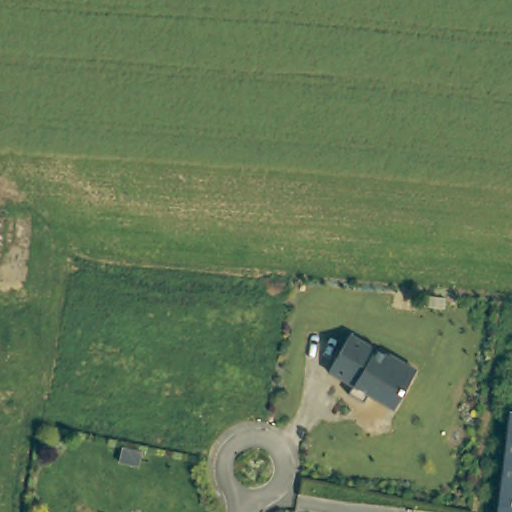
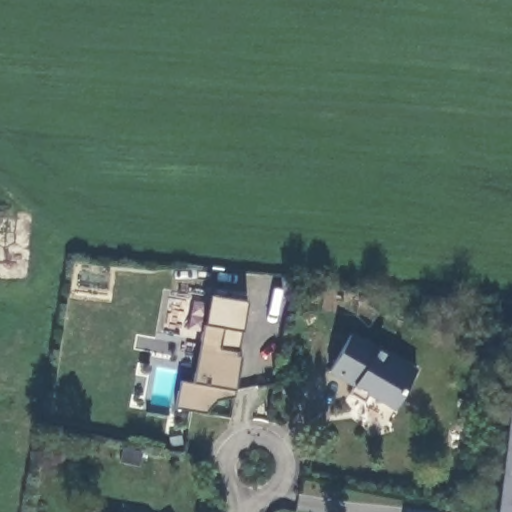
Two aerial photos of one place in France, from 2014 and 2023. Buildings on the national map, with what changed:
new [(240,331),(238,352),(241,356),(235,390),(236,397),(217,401),(206,415),(175,409),(181,381),(194,383),(206,324),(210,296),(247,302),(240,331)]
unchanged [(365,403),(349,394),(354,386),(329,372),(351,335),(389,357),(390,355),(416,370),(394,409),(376,399),(369,395),(365,403)]
unchanged [(512,411),(512,512),(493,512),(505,410),(512,411)]

